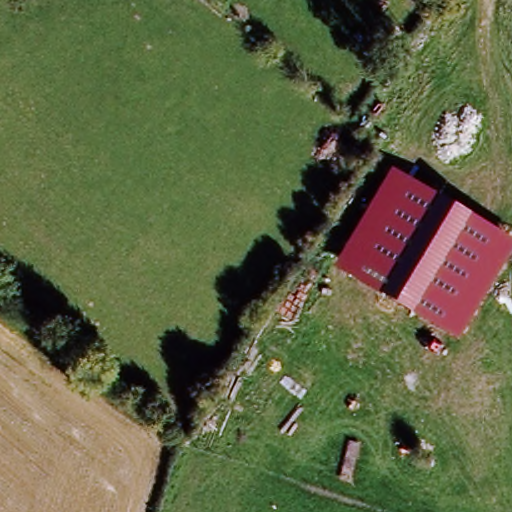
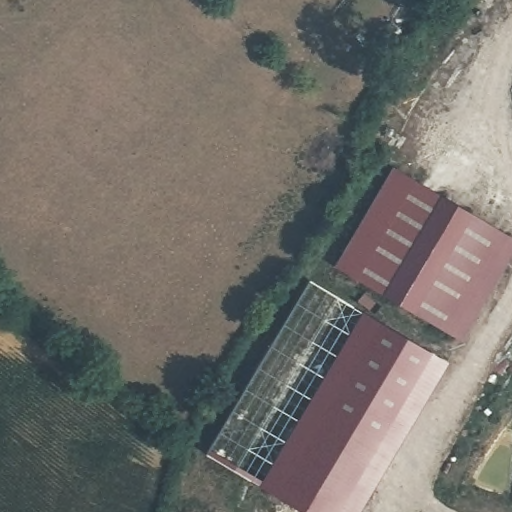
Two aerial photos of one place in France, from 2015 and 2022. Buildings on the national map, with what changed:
unchanged [(335,264),(392,169),(512,237),(512,251),(460,338),(335,264)]
new [(447,362),(358,512),(303,512),(258,486),(360,312),(447,362)]

